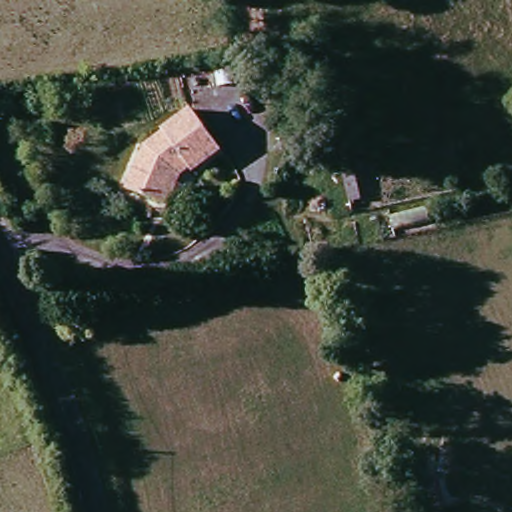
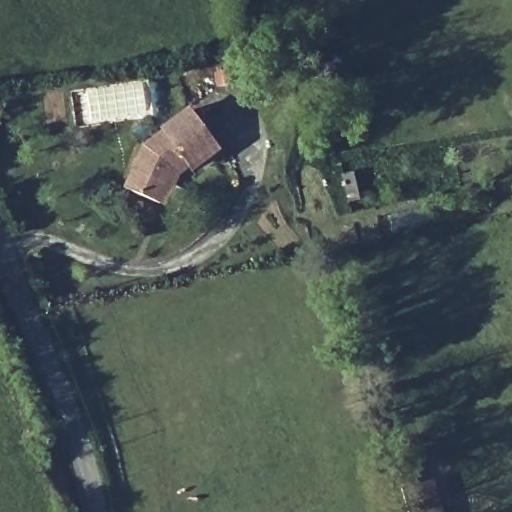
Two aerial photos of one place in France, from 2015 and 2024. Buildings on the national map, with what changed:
unchanged [(159,202),(127,187),(146,144),(167,127),(165,122),(192,105),(217,141),(176,167),(159,202)]
unchanged [(429,495),(404,502),(389,454),(415,449),(429,495)]

